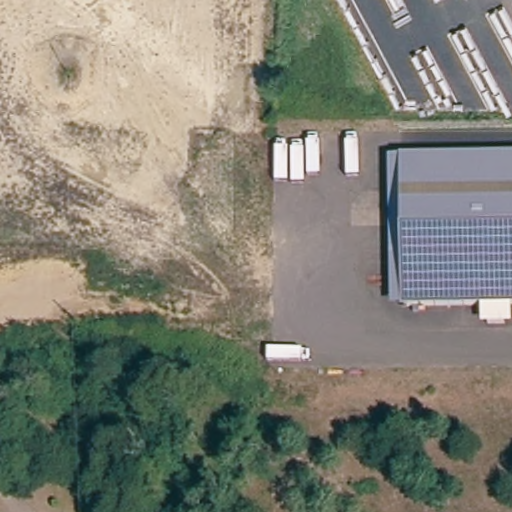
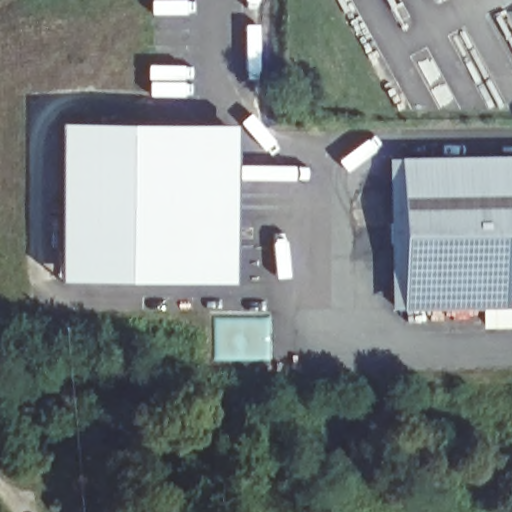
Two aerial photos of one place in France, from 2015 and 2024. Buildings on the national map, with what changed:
new [(58,277),(59,120),(234,123),(231,279),(58,277)]
unchanged [(402,156),(512,154),(512,303),(504,304),(504,323),(487,324),(486,304),(405,305),(402,156)]

